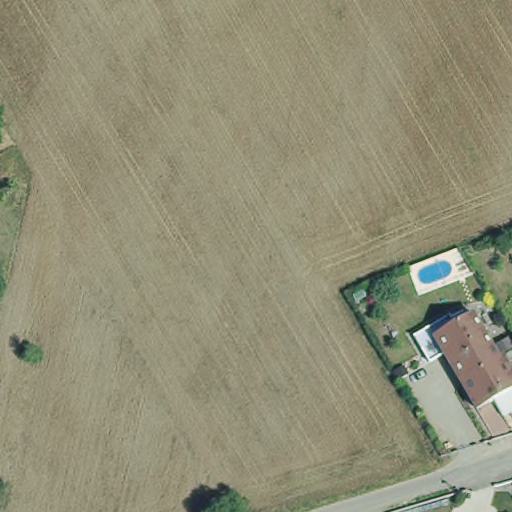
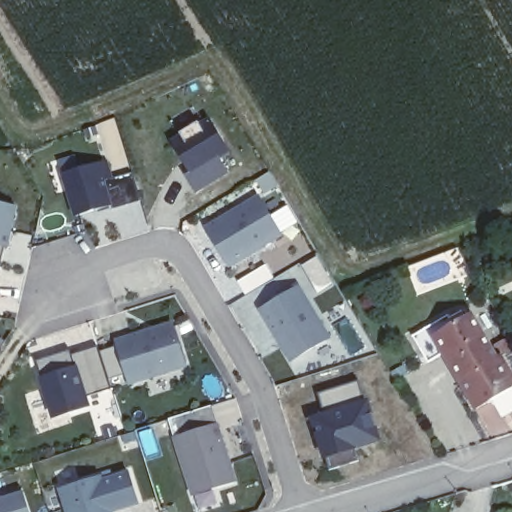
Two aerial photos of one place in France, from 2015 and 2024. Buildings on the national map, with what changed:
new [(184,175),(189,172),(170,142),(180,136),(179,133),(197,121),(199,124),(209,118),(227,149),(217,156),(226,171),(194,191),(184,175)]
new [(75,218),(61,174),(109,160),(115,179),(106,181),(113,205),(75,218)]
new [(205,227),(230,211),(232,213),(259,197),(280,234),(227,266),(205,227)]
new [(7,249),(1,267),(0,267),(0,201),(19,206),(9,249),(7,249)]
new [(0,267),(1,267),(0,272),(0,267)]
new [(290,364),(259,311),(301,285),(332,340),(290,364)]
unchanged [(509,414),(497,394),(484,401),(450,344),(434,352),(420,327),(455,308),(461,318),(477,308),(504,352),(508,350),(512,357),(512,412),(509,414)]
new [(125,387),(110,340),(177,320),(192,367),(125,387)]
new [(70,351),(70,357),(98,348),(112,391),(85,397),(90,409),(54,421),(35,365),(70,351)]
new [(354,446),(357,460),(330,468),(315,420),(326,417),(318,393),(359,380),(377,440),(354,446)]
new [(210,405),(217,423),(174,437),(167,419),(210,405)]
new [(194,497),(174,437),(219,423),(237,483),(194,497)]
new [(115,512),(68,512),(60,489),(101,476),(102,482),(131,473),(141,504),(115,512)]
new [(30,512),(0,512),(0,499),(23,492),(30,512)]

